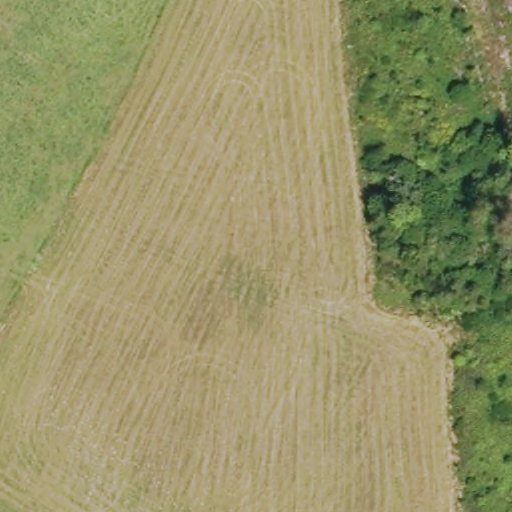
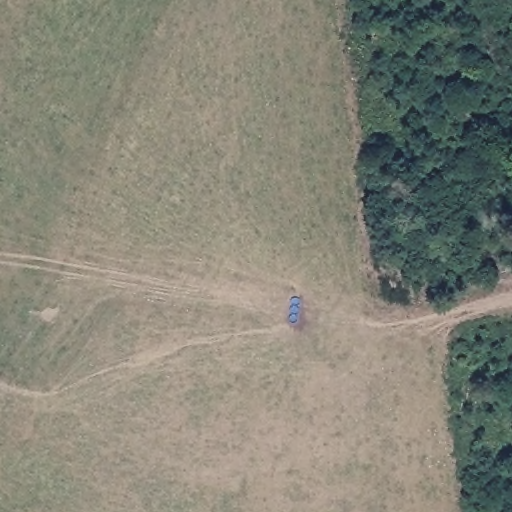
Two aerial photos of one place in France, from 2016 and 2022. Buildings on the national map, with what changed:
[]

